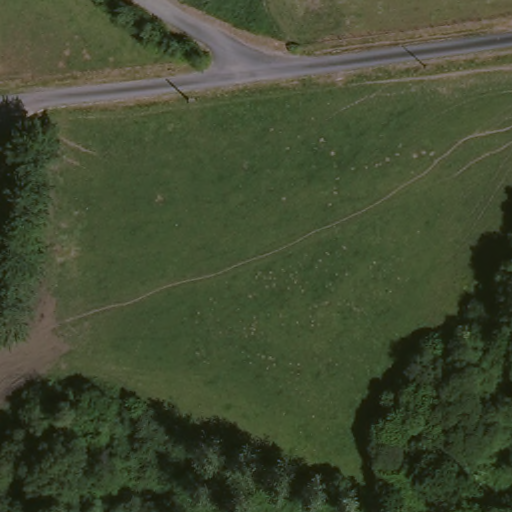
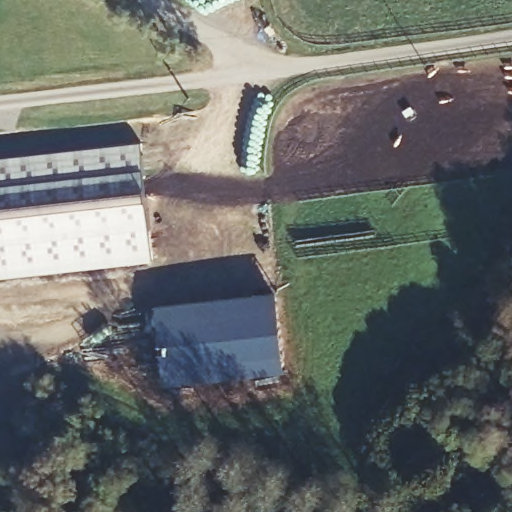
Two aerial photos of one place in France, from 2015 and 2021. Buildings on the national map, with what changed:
new [(0,277),(0,158),(142,142),(154,262),(0,277)]
new [(157,304),(279,292),(286,370),(167,381),(157,304)]

